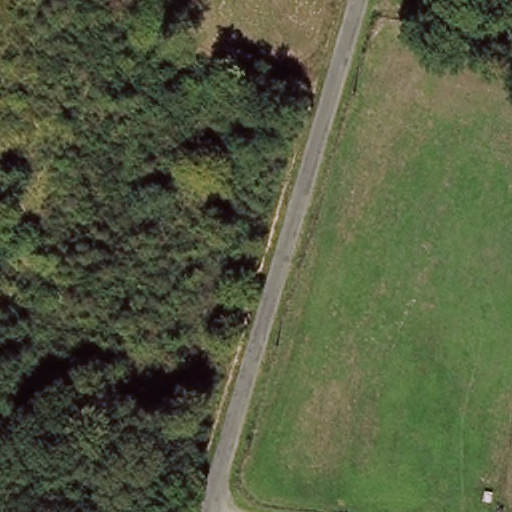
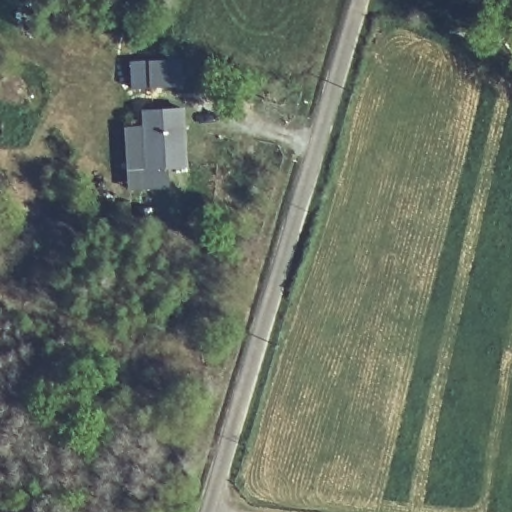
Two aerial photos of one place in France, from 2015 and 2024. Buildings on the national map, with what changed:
new [(184,85),(152,88),(149,60),(180,59),(184,85)]
new [(189,165),(169,168),(171,187),(130,190),(124,125),(145,124),(143,109),(186,107),(189,165)]

